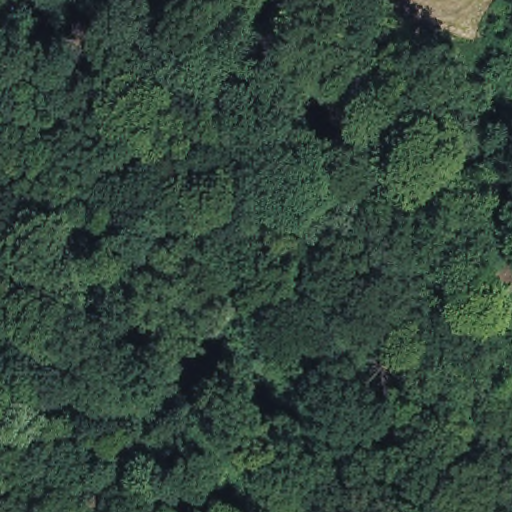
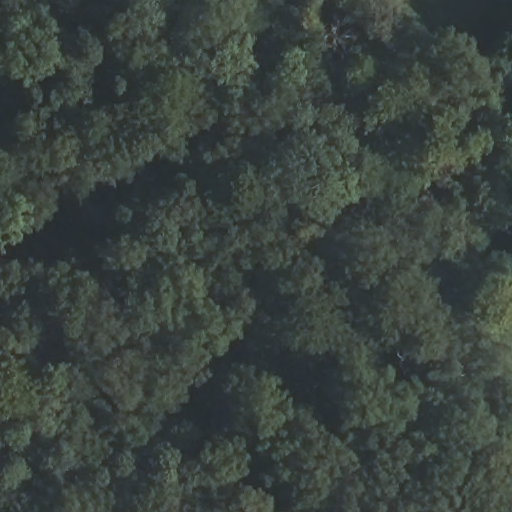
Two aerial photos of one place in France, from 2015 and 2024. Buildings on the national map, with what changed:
unchanged [(460,312),(465,245),(512,245),(512,308),(460,312)]

